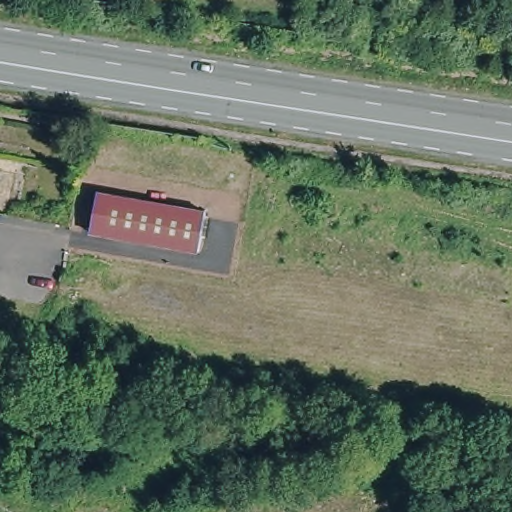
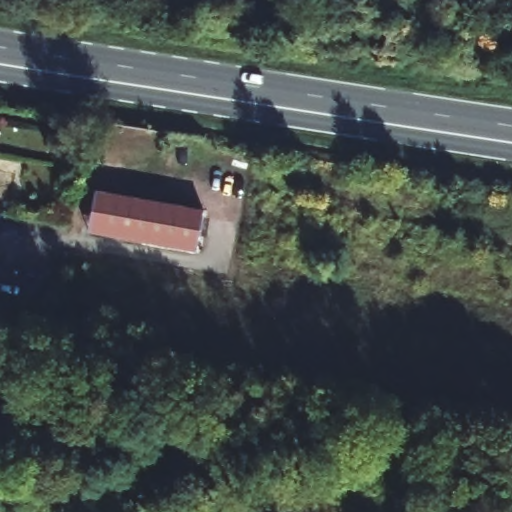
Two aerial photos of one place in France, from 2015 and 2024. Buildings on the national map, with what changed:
unchanged [(85,231),(93,190),(199,209),(192,250),(85,231)]

